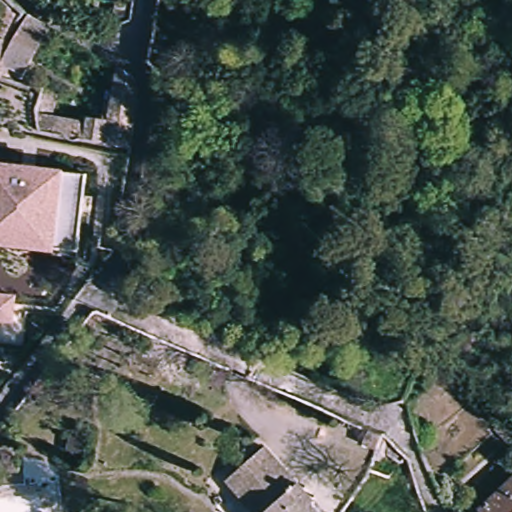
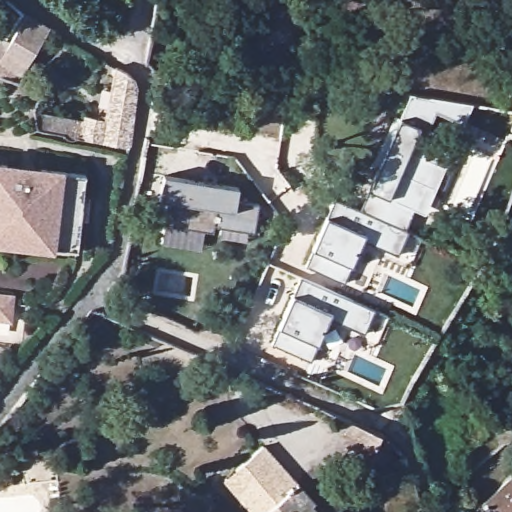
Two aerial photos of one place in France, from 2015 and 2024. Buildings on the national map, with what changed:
unchanged [(0,41),(2,41),(5,43),(10,45),(23,15),(45,29),(22,84),(0,78),(0,41)]
unchanged [(50,87),(47,109),(88,119),(90,116),(102,119),(112,61),(132,71),(128,151),(85,138),(37,125),(33,107),(34,105),(39,83),(50,87)]
new [(388,198),(420,128),(398,118),(410,92),(472,101),(462,123),(436,112),(426,136),(451,148),(423,212),(413,208),(403,231),(359,211),(369,189),(388,198)]
new [(365,164),(388,114),(420,128),(388,198),(369,189),(378,170),(365,164)]
unchanged [(55,252),(0,246),(0,161),(67,167),(66,173),(85,174),(75,249),(55,248),(55,252)]
new [(240,188),(237,201),(260,205),(255,234),(214,226),(213,232),(156,221),(166,173),(240,188)]
new [(408,233),(397,257),(362,242),(343,285),(305,268),(335,201),(408,233)]
new [(376,310),(365,334),(331,318),(312,361),(273,344),(303,277),(376,310)]
new [(3,325),(0,325),(0,299),(7,301),(3,325)]
unchanged [(366,420),(387,429),(382,445),(360,437),(366,420)]
unchanged [(270,460),(316,512),(250,512),(232,491),(270,460)]
unchanged [(480,512),(477,509),(512,474),(512,512),(480,512)]

